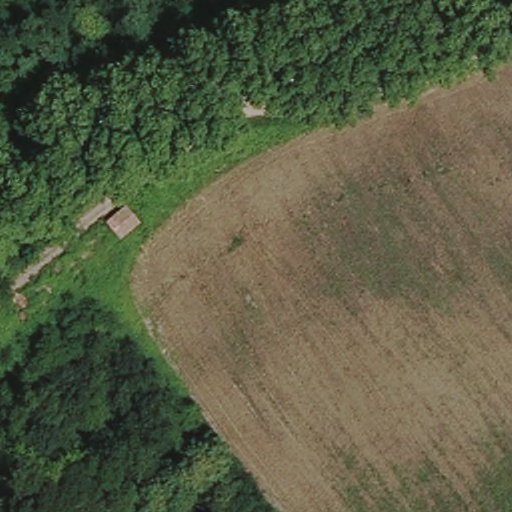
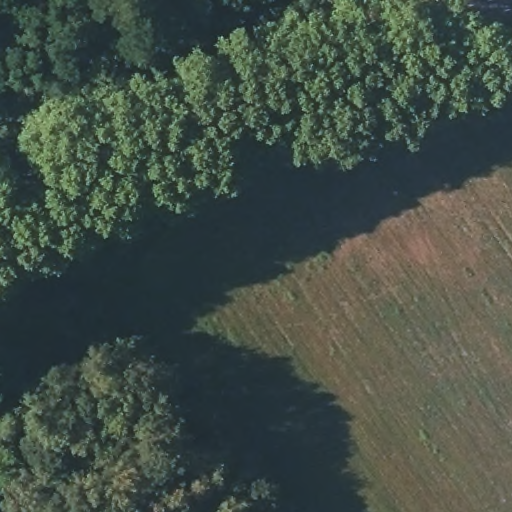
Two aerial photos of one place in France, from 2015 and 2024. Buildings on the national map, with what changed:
unchanged [(171,167),(185,157),(195,169),(180,180),(171,167)]
unchanged [(116,241),(100,221),(122,201),(140,223),(116,241)]

